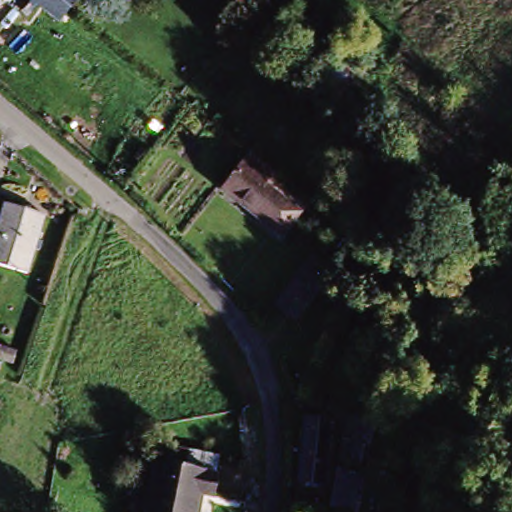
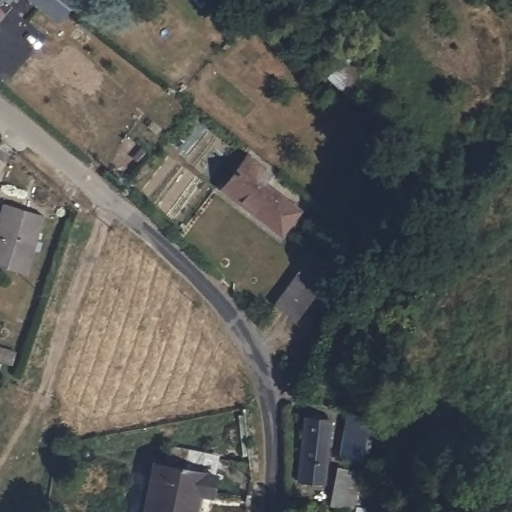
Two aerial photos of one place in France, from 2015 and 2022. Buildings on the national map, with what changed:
unchanged [(12,0),(8,6),(0,14),(0,0),(12,0)]
unchanged [(31,0),(75,0),(66,21),(31,0)]
unchanged [(7,30),(0,38),(0,24),(7,30)]
unchanged [(342,53),(357,70),(335,90),(320,74),(342,53)]
unchanged [(301,224),(280,246),(219,189),(248,159),(270,180),(263,187),(301,224)]
unchanged [(0,265),(0,243),(10,206),(45,215),(29,272),(0,265)]
unchanged [(301,313),(283,297),(319,254),(339,272),(334,276),(301,313)]
unchanged [(291,477),(300,420),(322,423),(313,480),(291,477)]
unchanged [(365,428),(360,465),(343,461),(348,425),(365,428)]
unchanged [(214,468),(212,492),(202,491),(201,512),(148,512),(151,465),(214,468)]

